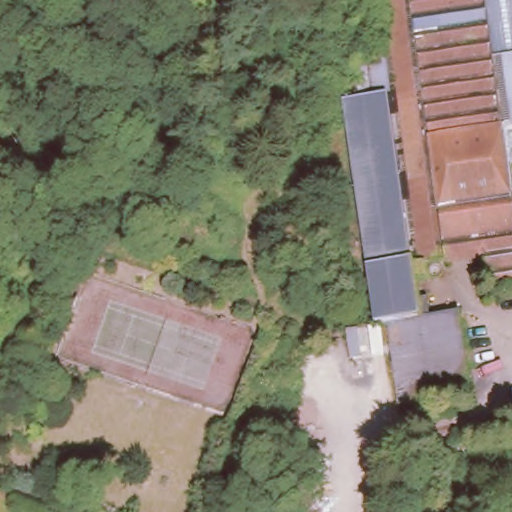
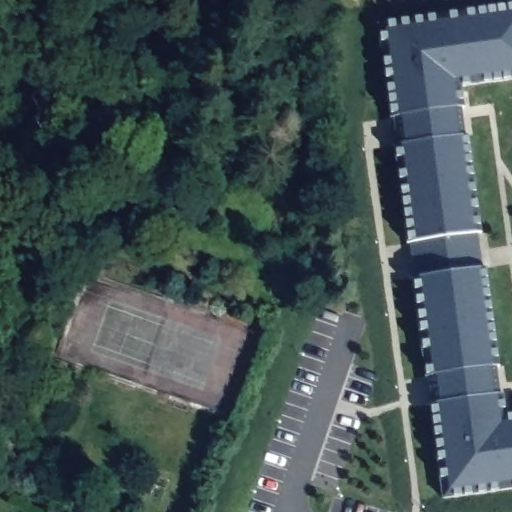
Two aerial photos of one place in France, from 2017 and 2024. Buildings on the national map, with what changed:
demolished [(512,181),(512,286),(489,290),(484,253),(438,258),(440,271),(414,275),(389,86),(357,90),(352,54),(384,50),(377,0),(512,0),(512,159),(509,160),(512,181)]
new [(457,70),(502,400),(512,399),(512,473),(439,481),(375,8),(432,0),(512,0),(512,63),(457,70)]
demolished [(414,275),(418,311),(385,316),(369,318),(340,92),(357,90),(389,86),(414,275)]
demolished [(385,316),(418,311),(458,306),(470,390),(430,395),(429,382),(395,386),(385,316)]

